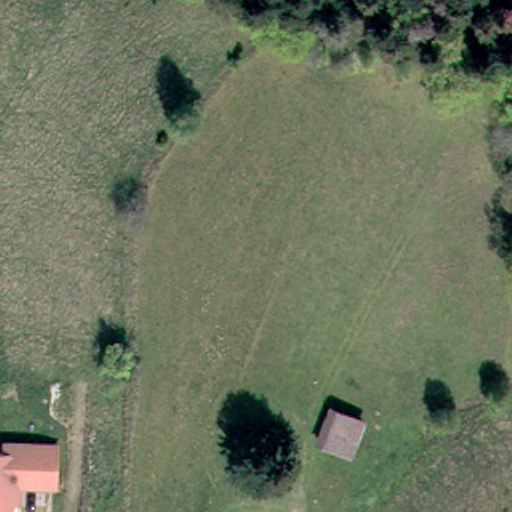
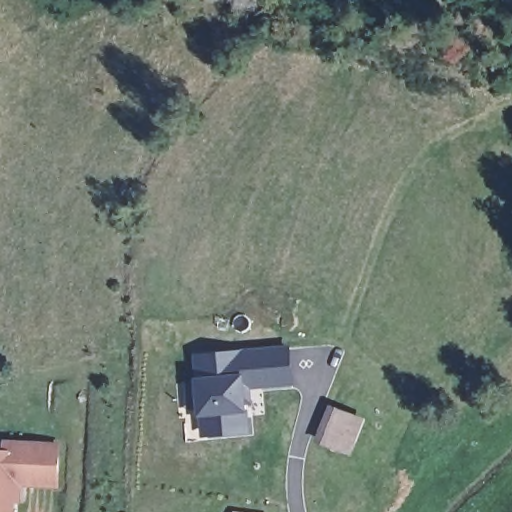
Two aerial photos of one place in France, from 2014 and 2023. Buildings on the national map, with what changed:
new [(243,402),(245,432),(203,436),(201,412),(197,358),(287,350),(290,383),(246,387),(247,402),(243,402)]
unchanged [(345,443),(320,433),(330,405),(355,415),(345,443)]
unchanged [(0,451),(6,451),(7,442),(57,444),(55,484),(19,482),(12,482),(5,490),(12,497),(12,499),(11,512),(0,512),(0,451)]

